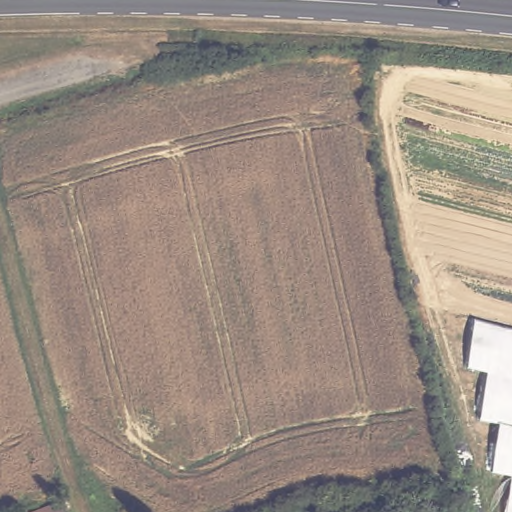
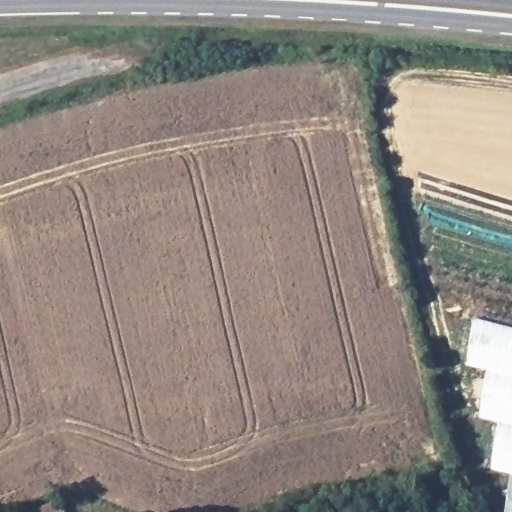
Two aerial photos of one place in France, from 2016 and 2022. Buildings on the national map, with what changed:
unchanged [(68,512),(66,512),(68,511),(68,512)]

